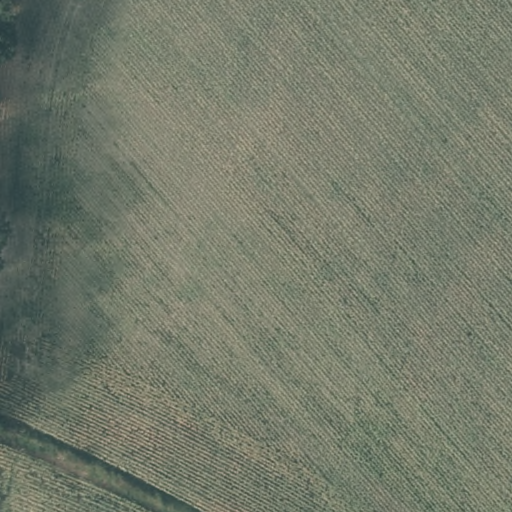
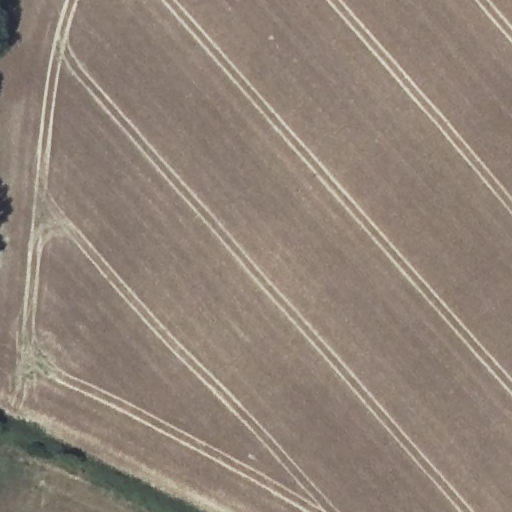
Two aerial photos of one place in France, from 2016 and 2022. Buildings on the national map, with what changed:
[]

